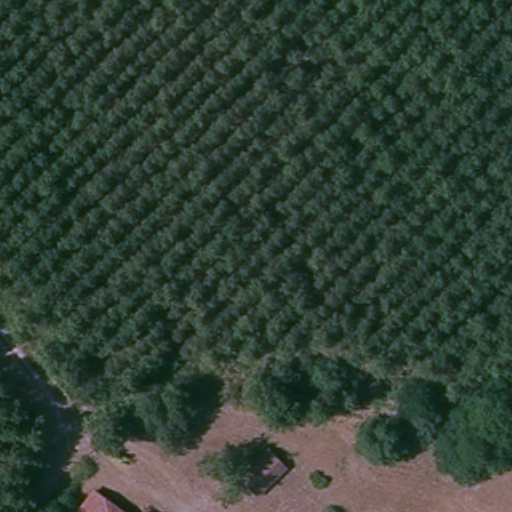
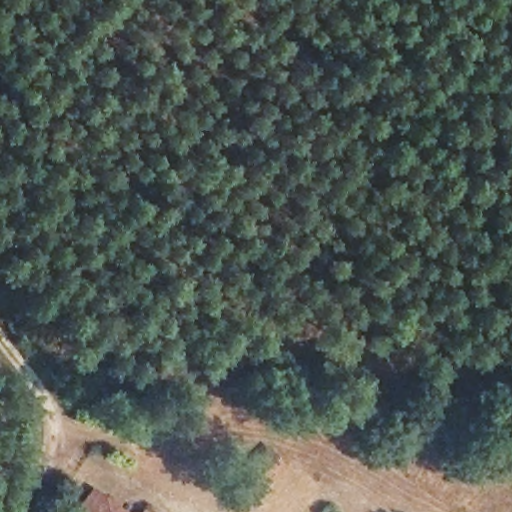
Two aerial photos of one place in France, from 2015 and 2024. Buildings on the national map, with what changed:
unchanged [(286,469),(258,497),(235,476),(263,448),(286,468),(286,469)]
unchanged [(75,512),(96,488),(124,512),(75,512)]

